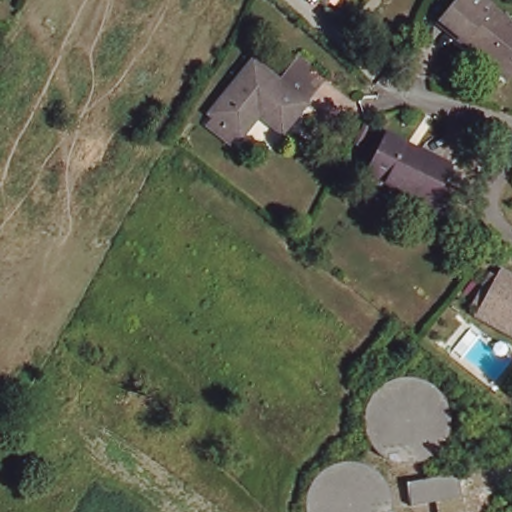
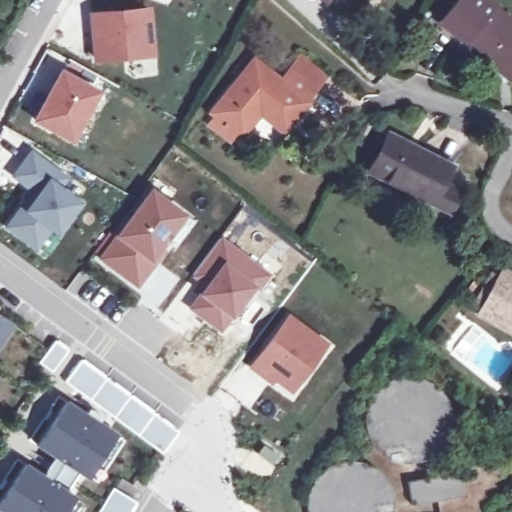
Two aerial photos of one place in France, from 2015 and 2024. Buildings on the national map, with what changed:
unchanged [(508,91),(499,84),(442,36),(468,3),(512,39),(512,86),(508,91)]
new [(157,8),(160,60),(93,65),(90,13),(157,8)]
unchanged [(210,125),(220,115),(217,113),(260,61),(286,82),(297,68),(306,57),(331,78),(322,89),(310,102),(312,104),(288,133),(265,114),(247,136),(244,134),(235,145),(210,125)]
new [(109,94),(80,151),(34,125),(62,68),(109,94)]
unchanged [(382,129),(390,134),(380,153),(372,149),(382,129)]
unchanged [(463,217),(447,208),(385,177),(392,161),(385,157),(395,137),(403,140),(465,171),(457,188),(474,197),(463,217)]
new [(76,175),(67,189),(87,204),(45,264),(0,229),(30,192),(10,177),(30,146),(76,175)]
new [(160,267),(139,292),(99,258),(147,197),(152,188),(190,219),(163,255),(167,258),(160,267)]
new [(277,272),(263,290),(261,287),(224,335),(190,309),(206,288),(193,276),(223,234),(277,272)]
unchanged [(512,278),(512,332),(480,315),(502,273),(512,278)]
new [(332,343),(296,394),(277,381),(272,389),(251,368),(288,313),(332,343)]
new [(0,315),(17,326),(0,351),(0,315)]
new [(72,350),(55,374),(39,362),(56,337),(72,350)]
new [(178,433),(163,453),(66,381),(82,360),(178,433)]
new [(0,369),(1,370),(0,372),(0,369)]
new [(163,453),(162,455),(77,390),(163,453)]
new [(112,430),(100,448),(105,451),(87,477),(80,473),(78,476),(62,464),(63,462),(38,446),(68,401),(112,430)]
demolished [(15,461),(28,439),(40,448),(27,469),(15,461)]
new [(256,454),(262,445),(277,456),(271,465),(256,454)]
new [(18,478),(27,464),(30,465),(52,480),(62,464),(78,476),(69,491),(76,495),(65,512),(5,512),(0,509),(0,505),(18,478)]
unchanged [(414,482),(460,473),(463,497),(440,502),(412,507),(408,483),(414,482)]
new [(135,502),(130,512),(98,512),(107,497),(112,488),(135,502)]

